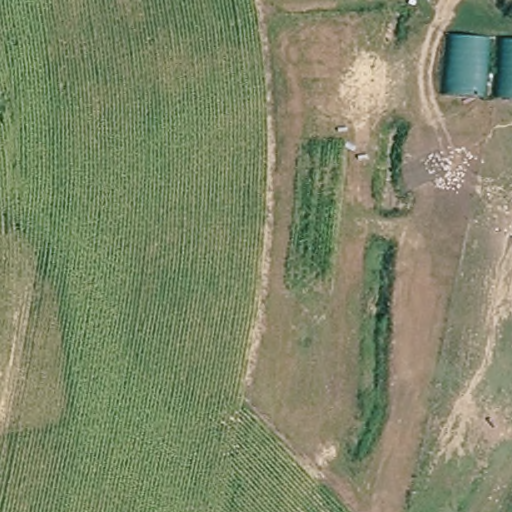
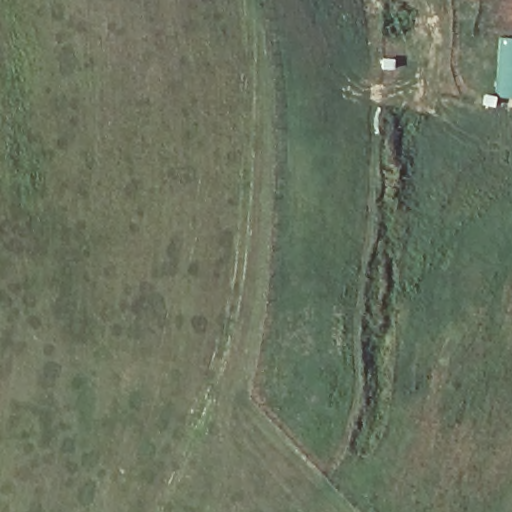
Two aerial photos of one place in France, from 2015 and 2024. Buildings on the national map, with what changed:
demolished [(453,30),(494,35),(486,96),(444,94),(453,30)]
unchanged [(503,37),(512,39),(512,98),(497,96),(503,37)]

